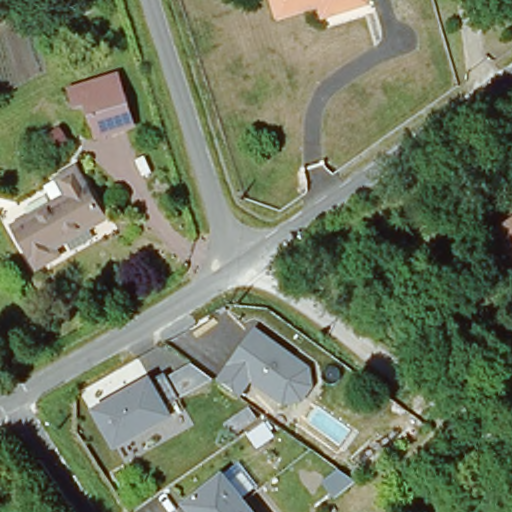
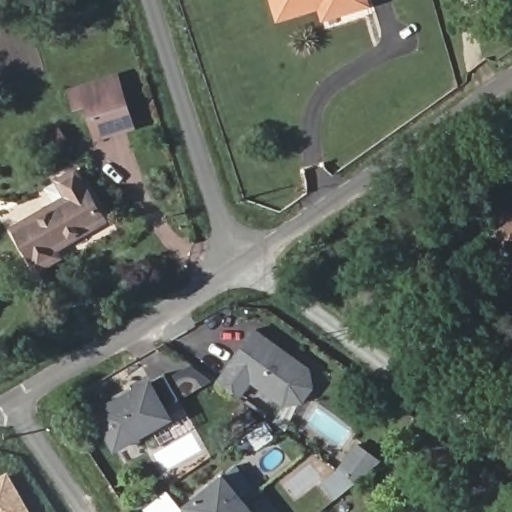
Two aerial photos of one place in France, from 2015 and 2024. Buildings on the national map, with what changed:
unchanged [(321,13),(317,2),(276,15),(271,0),(360,0),(321,13)]
unchanged [(132,136),(99,146),(86,113),(75,116),(70,103),(69,99),(115,86),(132,136)]
unchanged [(43,145),(60,131),(69,144),(52,156),(43,145)]
unchanged [(62,190),(80,177),(113,228),(62,262),(65,268),(46,281),(20,239),(71,205),(62,190)]
unchanged [(491,227),(512,212),(512,258),(491,227)]
unchanged [(309,368),(313,384),(305,404),(284,406),(252,384),(241,398),(215,381),(255,328),(309,368)]
unchanged [(149,376),(164,372),(166,376),(190,363),(210,379),(167,406),(174,418),(115,452),(91,411),(149,376)]
unchanged [(179,442),(192,464),(177,472),(165,450),(179,442)]
unchanged [(257,485),(243,496),(256,512),(188,512),(181,503),(221,472),(237,462),(257,485)]
new [(29,512),(0,512),(0,478),(7,475),(29,512)]

